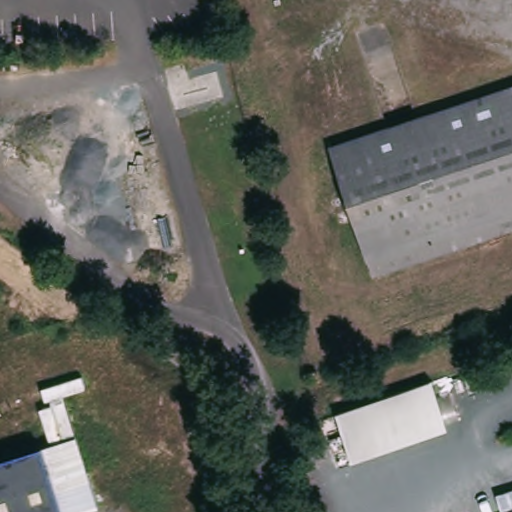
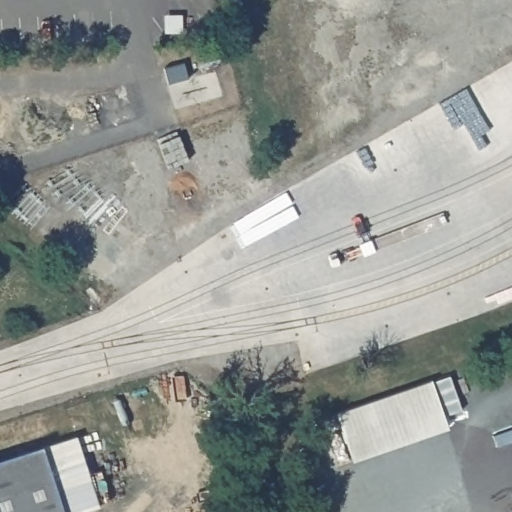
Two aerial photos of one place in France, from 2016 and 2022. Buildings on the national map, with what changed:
demolished [(330,145),(512,86),(512,228),(372,274),(330,145)]
unchanged [(433,376),(451,429),(351,460),(336,410),(433,376)]
unchanged [(77,438),(100,509),(91,512),(68,512),(47,446),(77,438)]
unchanged [(0,461),(47,446),(68,512),(0,512),(0,461)]

